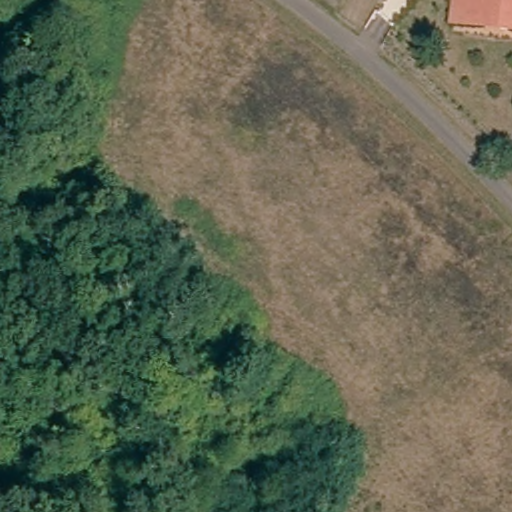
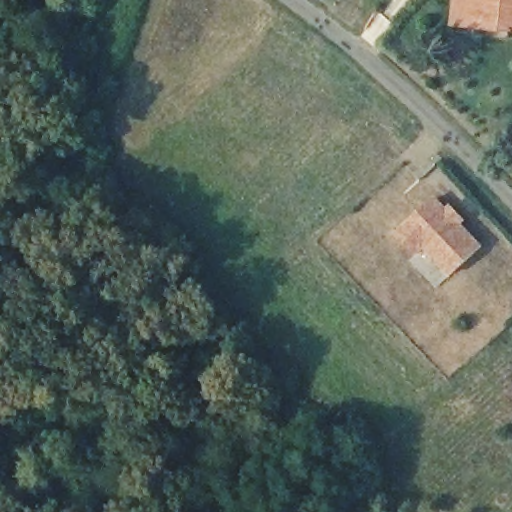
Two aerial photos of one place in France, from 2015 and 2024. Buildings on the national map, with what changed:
unchanged [(473,28),(454,25),(458,0),(512,0),(512,34),(473,28)]
new [(451,278),(424,250),(417,257),(394,235),(436,196),(448,207),(451,205),(466,221),(463,225),(484,247),(451,278)]

